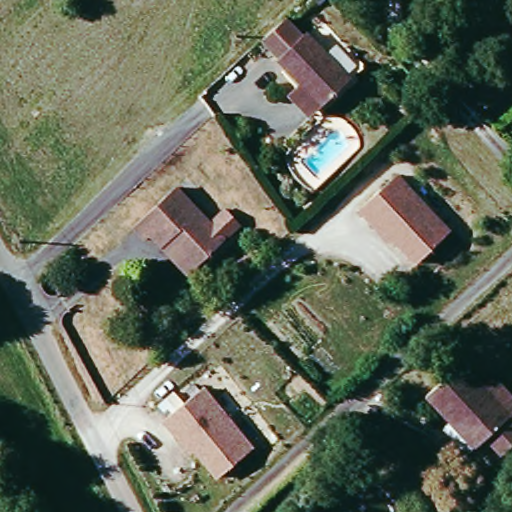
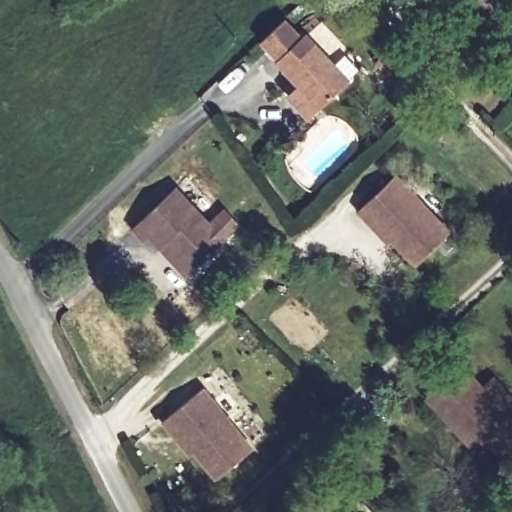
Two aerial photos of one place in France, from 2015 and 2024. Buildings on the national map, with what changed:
unchanged [(289,96),(297,89),(286,77),(292,71),(264,40),(291,15),(352,80),(319,112),(312,119),(289,96)]
unchanged [(361,211),(400,177),(423,201),(452,233),(421,264),(390,232),(381,223),(376,227),(361,211)]
unchanged [(164,245),(157,250),(135,227),(180,183),(218,226),(236,210),(247,224),(204,265),(192,275),(164,245)]
unchanged [(449,425),(452,422),(429,397),(467,363),(512,413),(512,454),(504,461),(489,445),(477,455),(449,425)]
unchanged [(174,439),(159,421),(197,389),(247,449),(215,478),(186,445),(179,436),(174,439)]

